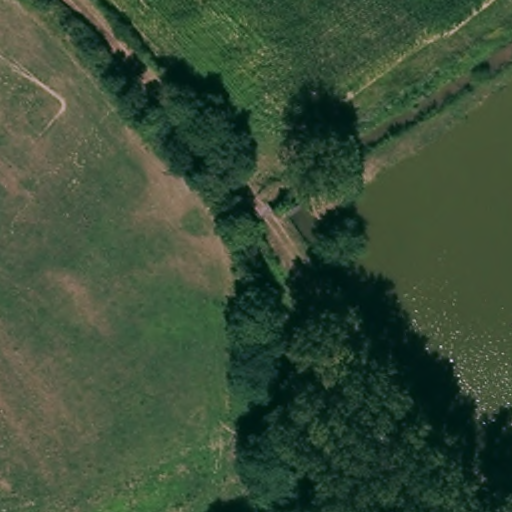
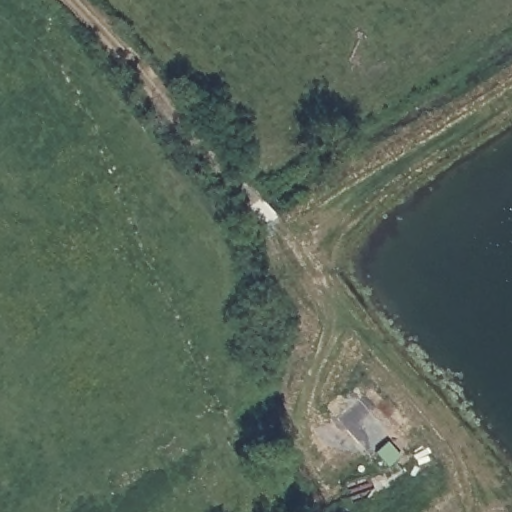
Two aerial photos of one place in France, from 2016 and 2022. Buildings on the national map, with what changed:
unchanged [(360,427),(346,409),(360,397),(373,415),(360,427)]

